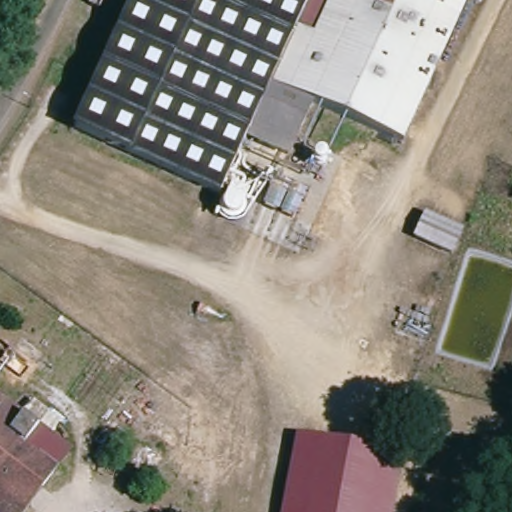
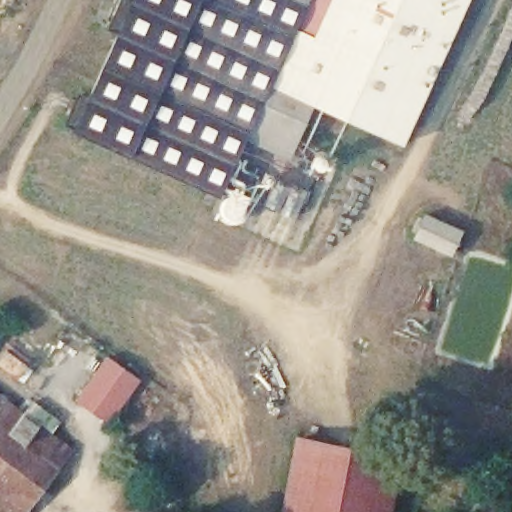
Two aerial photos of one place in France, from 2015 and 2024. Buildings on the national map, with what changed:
unchanged [(219,198),(71,130),(130,0),(308,0),(292,36),(270,83),(313,103),(299,132),(297,136),(289,152),(247,135),(219,198)]
unchanged [(270,83),(292,36),(308,0),(465,0),(401,142),(313,103),(270,83)]
unchanged [(425,212),(462,229),(452,252),(414,235),(425,212)]
new [(74,398),(105,356),(139,379),(108,422),(74,398)]
unchanged [(24,512),(0,512),(0,400),(69,453),(24,512)]
unchanged [(285,512),(299,438),(401,457),(390,512),(285,512)]

